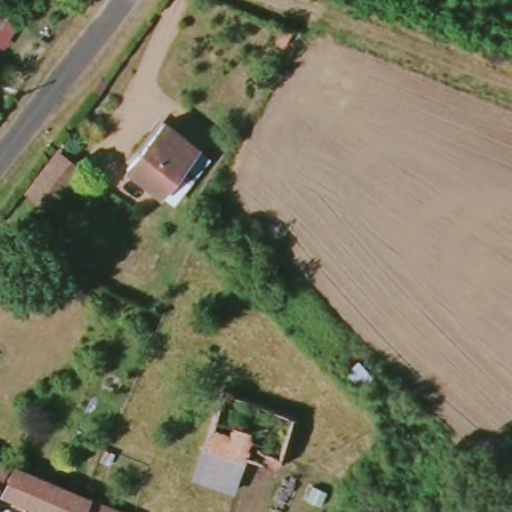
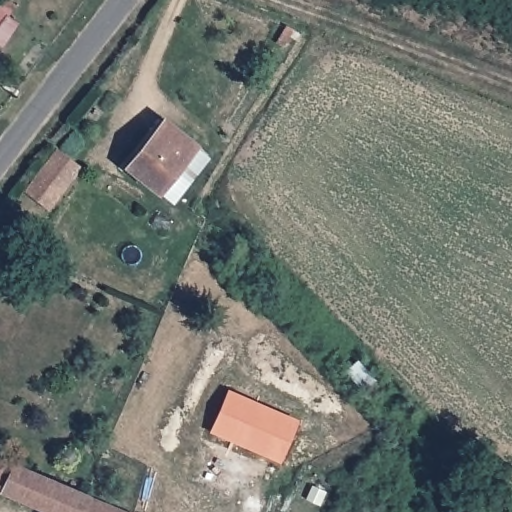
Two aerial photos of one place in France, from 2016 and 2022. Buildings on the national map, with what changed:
unchanged [(127,163),(166,119),(196,144),(158,192),(127,163)]
unchanged [(211,156),(173,204),(158,192),(196,144),(211,156)]
unchanged [(75,173),(46,210),(28,195),(56,158),(75,173)]
unchanged [(359,362),(375,382),(366,391),(350,371),(359,362)]
new [(228,391),(300,421),(281,465),(211,434),(228,391)]
unchanged [(82,512),(48,512),(0,491),(0,492),(0,457),(90,494),(82,512)]
unchanged [(133,512),(82,512),(90,494),(133,512)]

